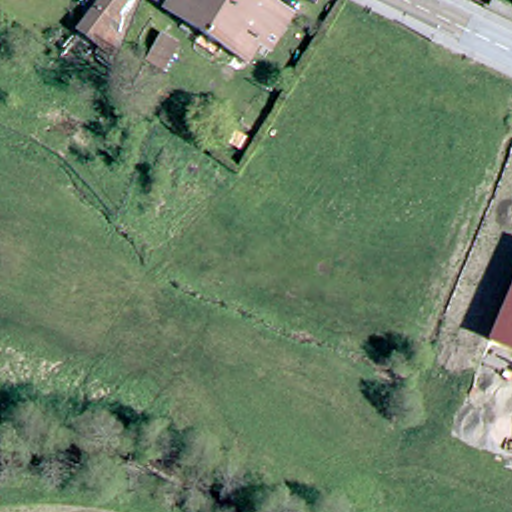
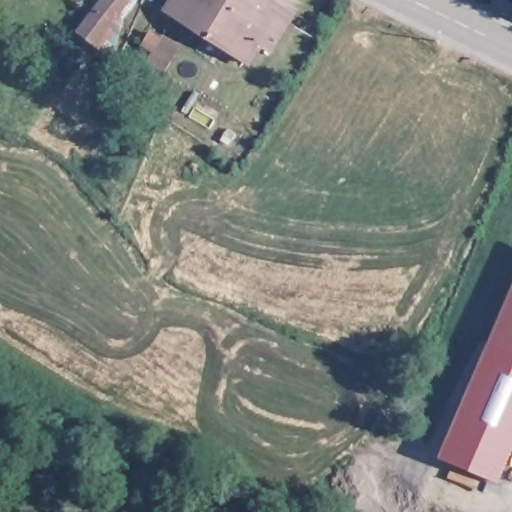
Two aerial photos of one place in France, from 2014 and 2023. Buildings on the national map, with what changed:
unchanged [(108,57),(77,34),(102,0),(139,0),(108,57)]
unchanged [(290,27),(272,55),(262,48),(250,66),(170,14),(179,0),(264,0),(284,13),(295,20),(290,27)]
unchanged [(491,10),(495,0),(497,0),(512,7),(512,20),(491,10)]
unchanged [(165,29),(152,49),(142,43),(154,23),(165,29)]
unchanged [(489,341),(512,286),(512,351),(489,341)]
new [(497,483),(438,458),(489,341),(512,351),(512,451),(497,483)]

